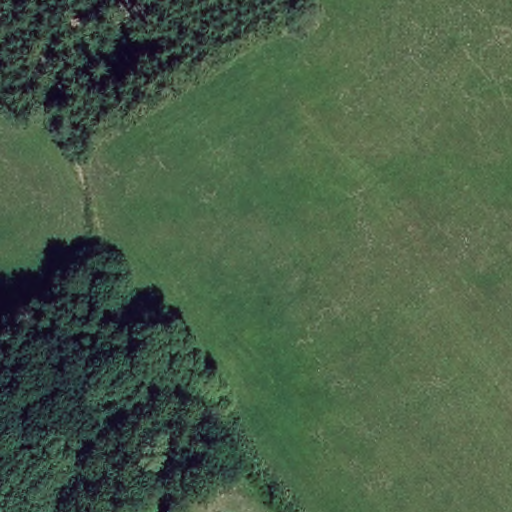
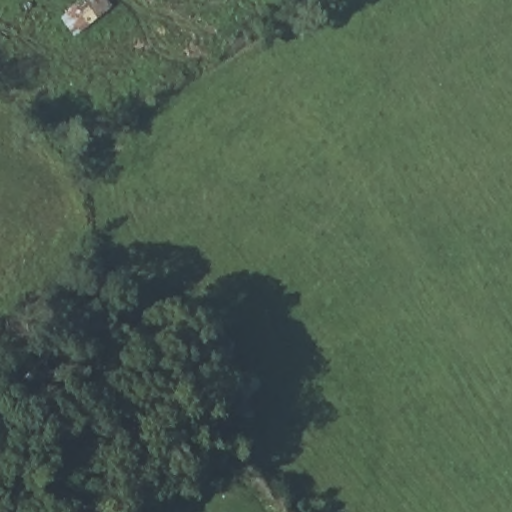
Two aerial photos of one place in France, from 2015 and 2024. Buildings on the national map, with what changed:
[]

